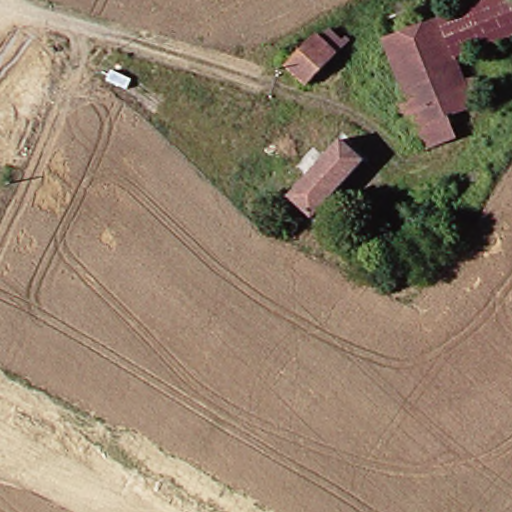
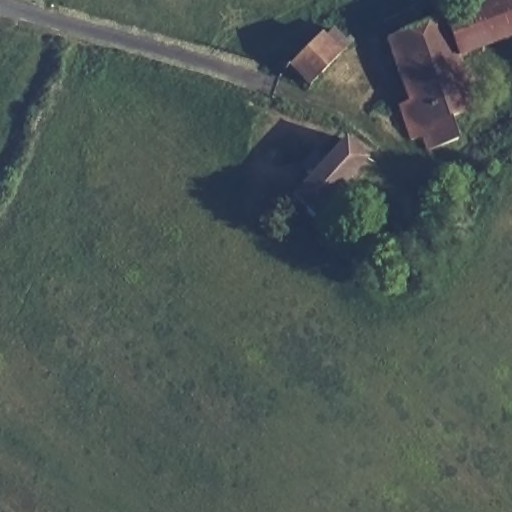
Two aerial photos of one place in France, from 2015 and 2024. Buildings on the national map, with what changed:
unchanged [(453,19),(498,0),(512,0),(512,42),(467,60),(453,19)]
unchanged [(434,152),(428,137),(415,141),(407,109),(418,105),(397,42),(441,24),(453,19),(467,60),(479,93),(492,88),(495,95),(481,101),(483,109),(457,119),(466,140),(442,150),(434,152)]
unchanged [(290,61),(323,31),(329,37),(335,33),(342,42),(347,38),(354,46),(308,81),(290,61)]
unchanged [(368,168),(316,220),(293,197),(346,145),(368,168)]

